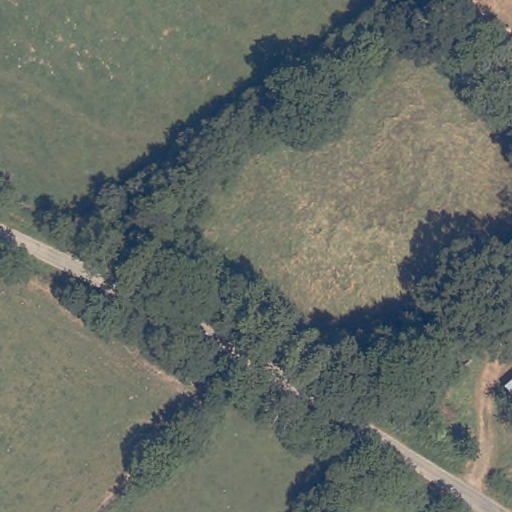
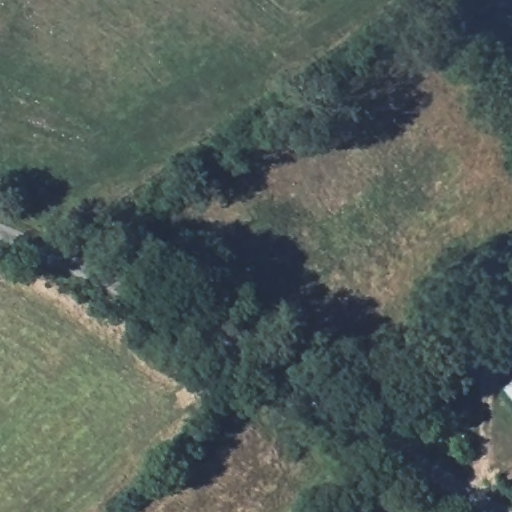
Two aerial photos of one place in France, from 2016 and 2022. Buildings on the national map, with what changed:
unchanged [(505,382),(512,375),(512,390),(505,382)]

